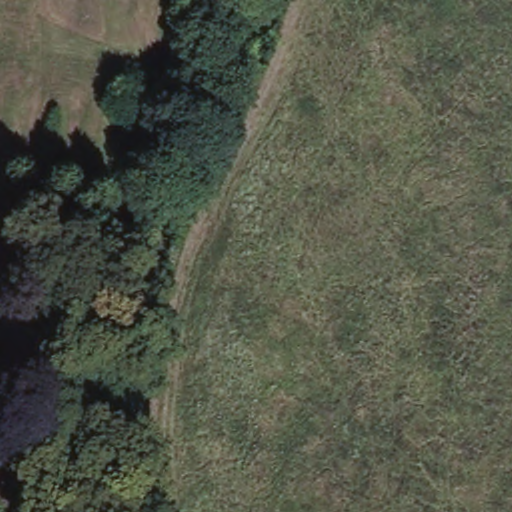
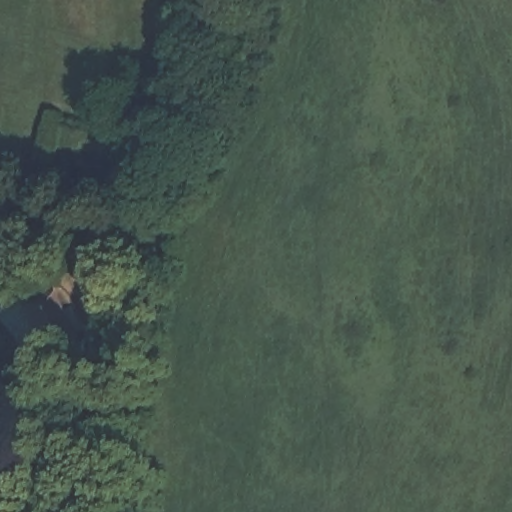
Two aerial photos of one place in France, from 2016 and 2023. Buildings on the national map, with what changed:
unchanged [(0,236),(0,232),(1,232),(0,236)]

